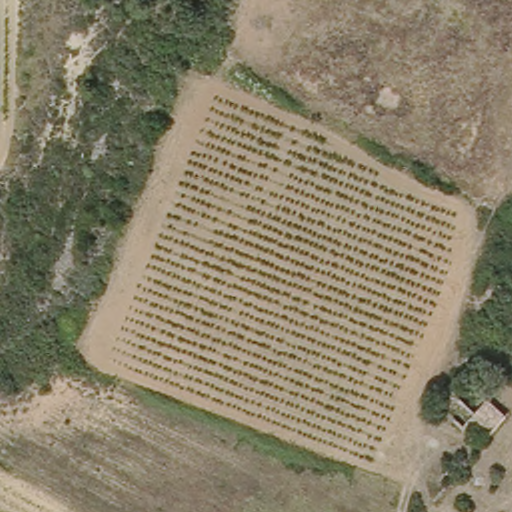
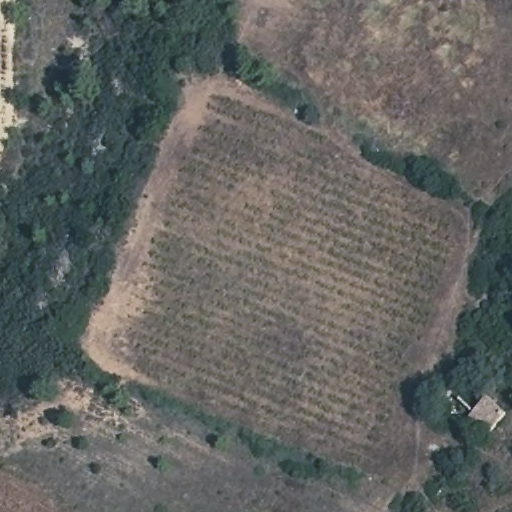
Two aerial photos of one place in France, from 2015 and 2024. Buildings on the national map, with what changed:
unchanged [(468,419),(487,396),(511,419),(493,440),(468,419)]

